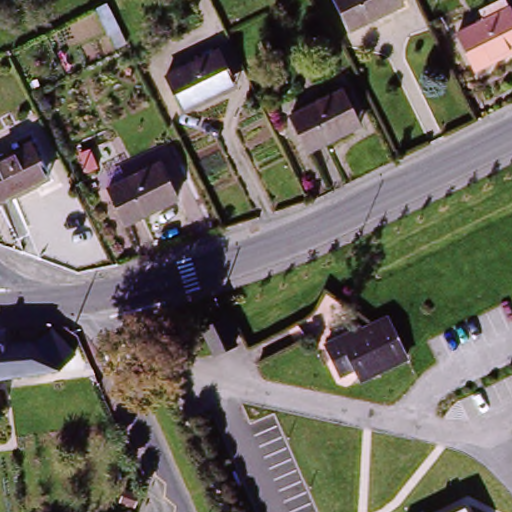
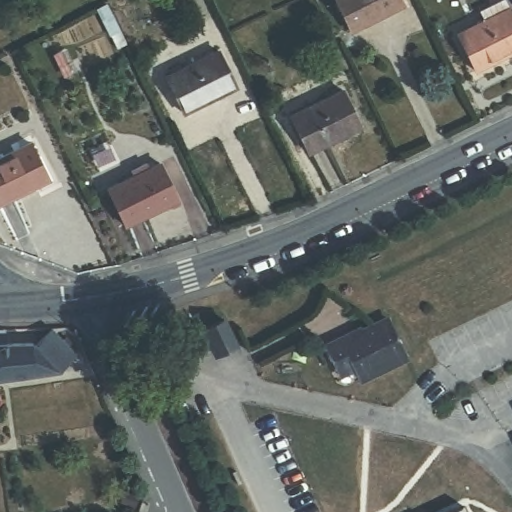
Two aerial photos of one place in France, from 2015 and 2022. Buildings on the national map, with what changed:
unchanged [(396,11),(352,32),(336,0),(399,0),(403,7),(396,11)]
unchanged [(458,31),(485,17),(479,7),(493,0),(506,0),(512,12),(512,48),(476,67),(458,31)]
unchanged [(166,77),(218,52),(228,74),(236,89),(229,92),(184,114),(166,77)]
unchanged [(291,117),(342,92),(352,112),(359,129),(353,131),(308,152),(291,117)]
unchanged [(25,144),(42,178),(35,182),(36,184),(0,201),(0,156),(25,144)]
unchanged [(160,165),(178,200),(125,226),(108,191),(160,165)]
unchanged [(356,376),(351,365),(337,372),(321,339),(337,332),(339,336),(383,315),(402,353),(356,376)]
unchanged [(210,348),(200,326),(219,317),(222,322),(230,337),(231,340),(210,348)]
unchanged [(64,373),(60,367),(55,371),(0,380),(0,344),(27,343),(30,346),(50,328),(59,338),(63,336),(71,344),(67,347),(73,355),(72,356),(76,367),(64,373)]
unchanged [(466,512),(470,511),(470,512),(466,512)]

